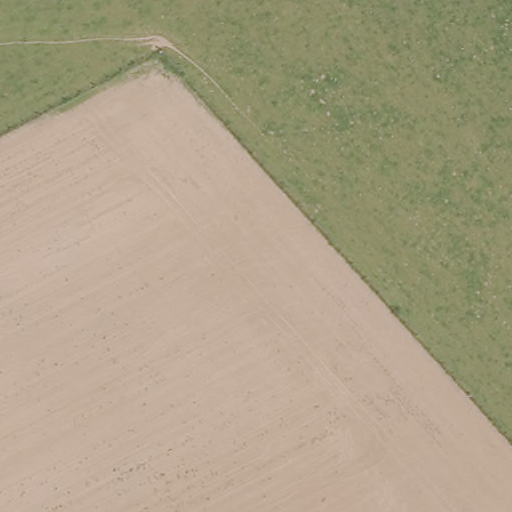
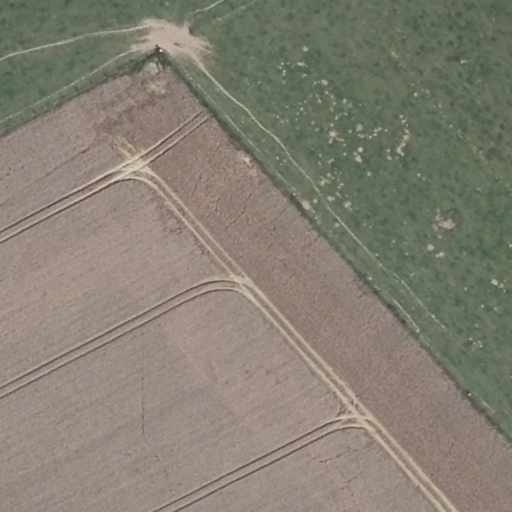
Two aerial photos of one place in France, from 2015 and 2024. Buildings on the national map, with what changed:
[]

